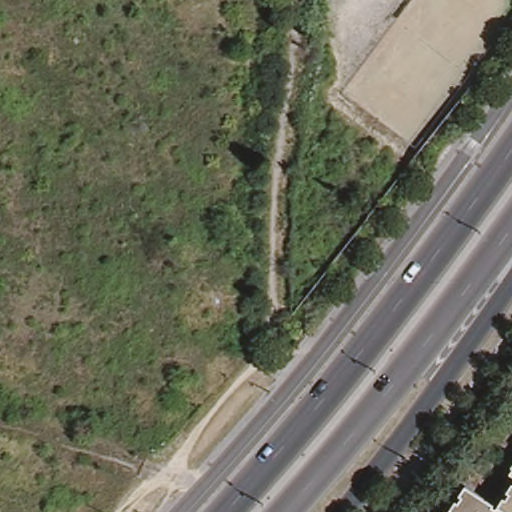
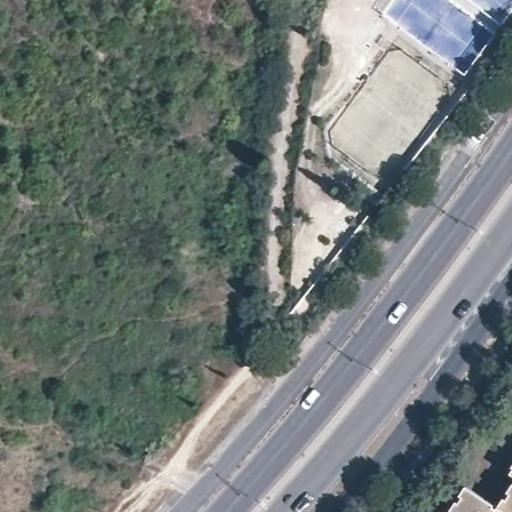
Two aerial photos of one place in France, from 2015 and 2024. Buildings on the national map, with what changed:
unchanged [(512,467),(512,475),(509,472),(512,467)]
unchanged [(512,481),(512,512),(508,512),(497,505),(512,481)]
unchanged [(497,505),(508,512),(448,512),(465,485),(497,505)]
unchanged [(442,512),(439,512),(440,511),(442,512)]

